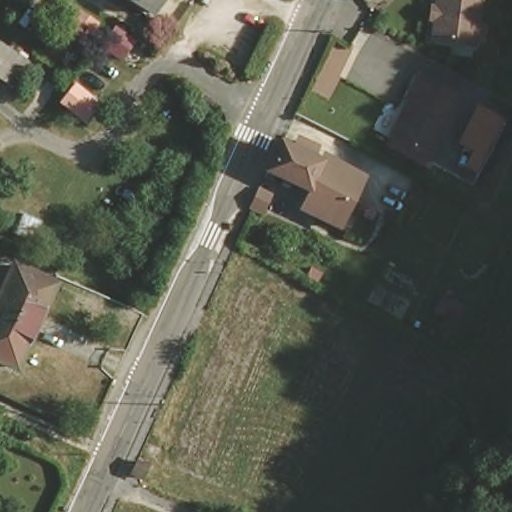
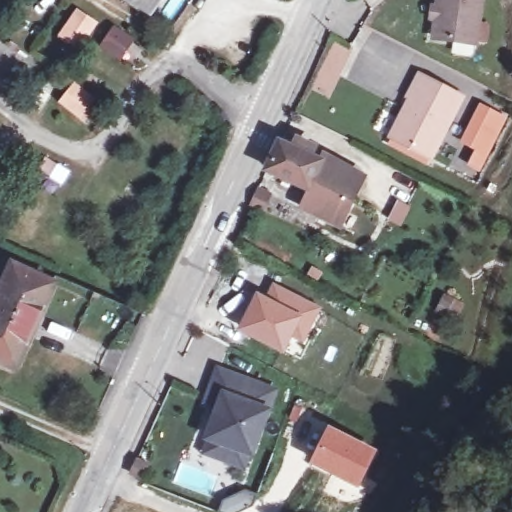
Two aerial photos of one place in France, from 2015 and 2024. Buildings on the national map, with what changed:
unchanged [(147,20),(142,26),(102,0),(161,0),(147,20)]
unchanged [(435,19),(435,9),(440,10),(442,0),(483,0),(477,45),(443,40),(437,39),(440,19),(435,19)]
unchanged [(19,87),(0,73),(0,41),(32,67),(19,87)]
unchanged [(48,64),(65,76),(57,84),(42,73),(48,64)]
unchanged [(415,92),(422,77),(464,98),(432,159),(394,138),(417,93),(415,92)]
unchanged [(75,84),(99,104),(85,126),(59,105),(75,84)]
new [(482,173),(467,165),(475,150),(460,143),(480,104),(508,118),(482,173)]
unchanged [(285,148),(325,165),(327,160),(354,172),(369,178),(345,230),(322,220),(332,200),(274,174),(285,148)]
unchanged [(265,193),(278,199),(270,218),(257,212),(265,193)]
unchanged [(0,369),(0,312),(17,276),(57,296),(19,378),(0,369)]
new [(255,291),(265,296),(271,281),(322,307),(303,344),(292,338),(284,355),(236,331),(255,291)]
new [(217,409),(205,404),(216,372),(272,393),(249,456),(242,472),(200,456),(205,440),(217,409)]
new [(328,424),(377,450),(357,489),(308,463),(328,424)]
unchanged [(142,459),(151,464),(145,476),(136,471),(142,459)]

